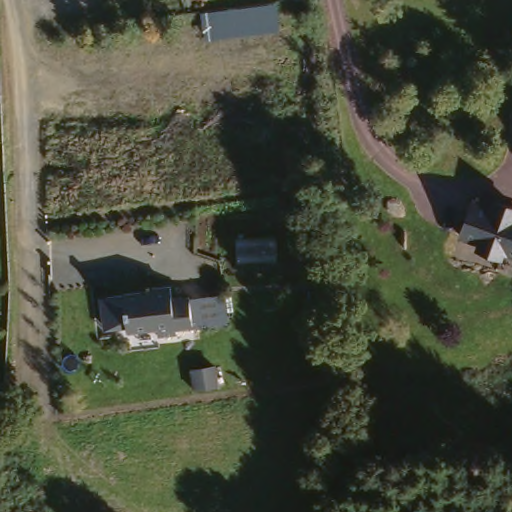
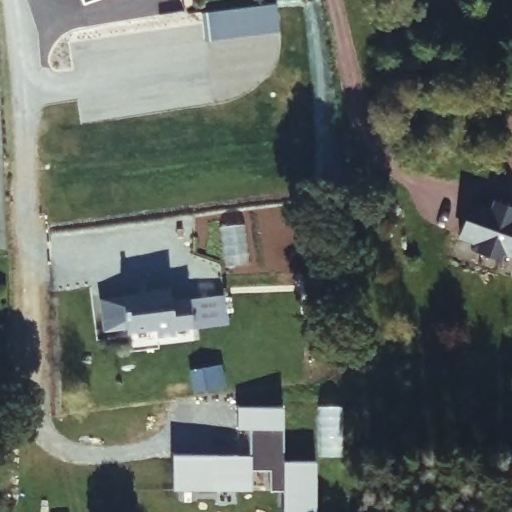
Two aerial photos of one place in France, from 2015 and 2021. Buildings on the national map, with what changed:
unchanged [(271,12),(272,40),(197,40),(196,13),(271,12)]
unchanged [(482,206),(506,210),(506,217),(512,218),(512,255),(501,254),(501,260),(476,257),(476,251),(457,249),(461,211),(481,214),(482,206)]
unchanged [(175,336),(156,338),(156,329),(126,332),(123,296),(151,292),(151,290),(170,288),(171,300),(188,298),(189,300),(223,296),(226,325),(192,328),(174,330),(175,336)]
unchanged [(324,291),(328,331),(311,333),(308,293),(324,291)]
new [(238,470),(250,470),(250,438),(238,438),(238,410),(283,408),(284,461),(316,461),(316,512),(283,512),(283,491),(269,491),(269,480),(251,480),(251,490),(216,490),(216,500),(173,499),(173,465),(238,465),(238,470)]

